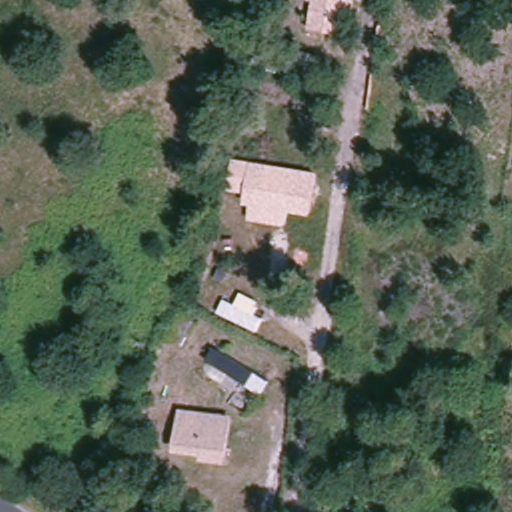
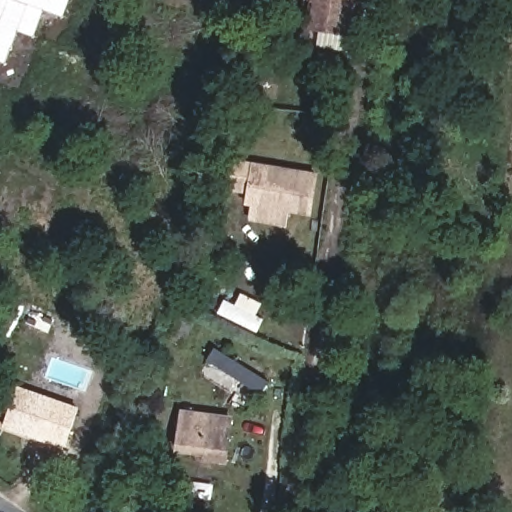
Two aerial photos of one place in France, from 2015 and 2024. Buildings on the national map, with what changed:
new [(43,9),(33,37),(18,31),(5,65),(0,63),(0,0),(69,0),(63,17),(43,9)]
unchanged [(342,4),(337,32),(309,27),(312,1),(308,0),(356,0),(355,6),(342,4)]
unchanged [(313,214),(292,212),(289,224),(250,218),(253,207),(245,205),(246,194),(229,190),(234,159),(320,173),(313,214)]
unchanged [(169,322),(184,329),(174,354),(159,347),(169,322)]
unchanged [(261,394),(207,359),(216,345),(271,380),(261,394)]
new [(6,428),(20,385),(80,406),(65,448),(6,428)]
unchanged [(232,421),(232,462),(211,462),(211,457),(182,457),(181,420),(232,421)]

